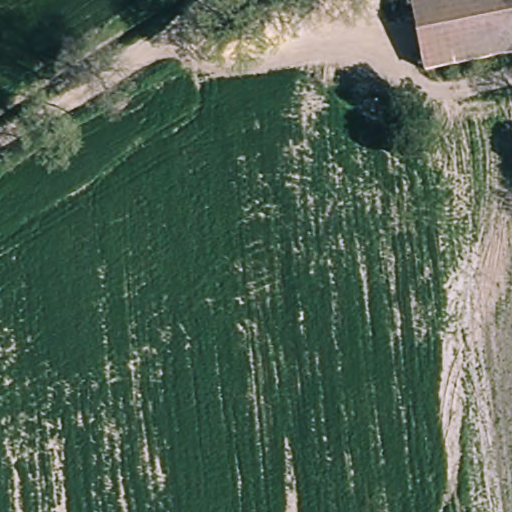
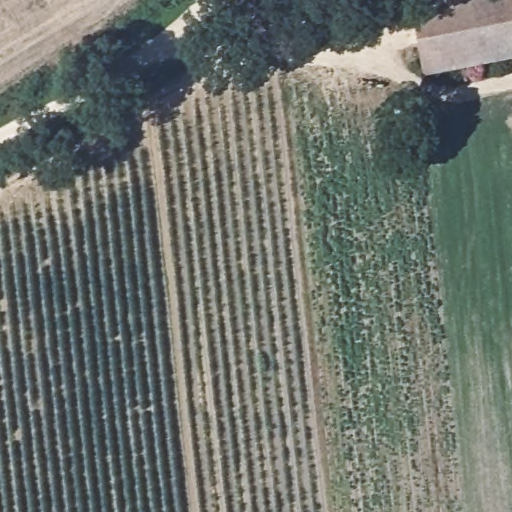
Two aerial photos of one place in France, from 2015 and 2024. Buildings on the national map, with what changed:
unchanged [(512,0),(512,55),(435,64),(427,0),(512,0)]

